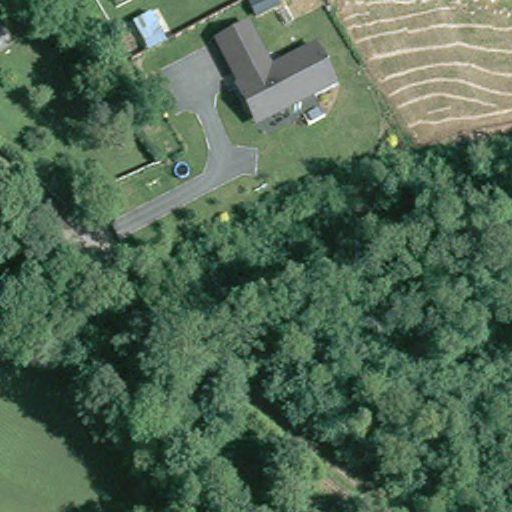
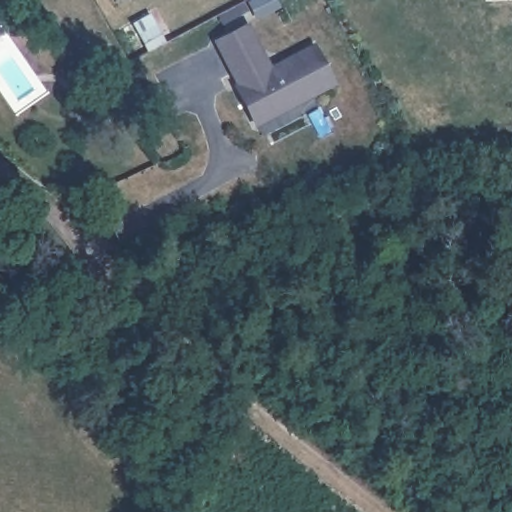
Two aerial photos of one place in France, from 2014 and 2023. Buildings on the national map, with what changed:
unchanged [(335,86),(253,125),(211,40),(249,20),(271,65),(312,43),(335,86)]

